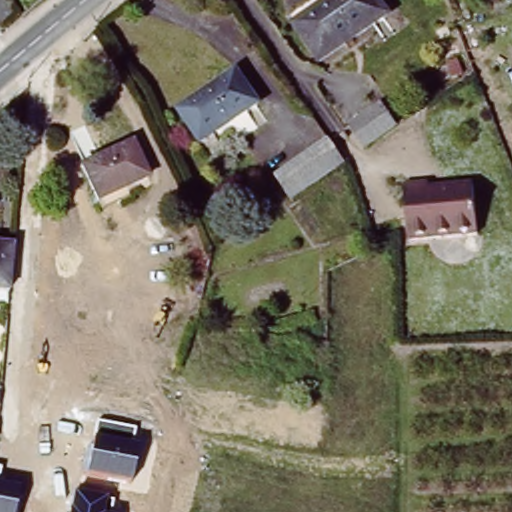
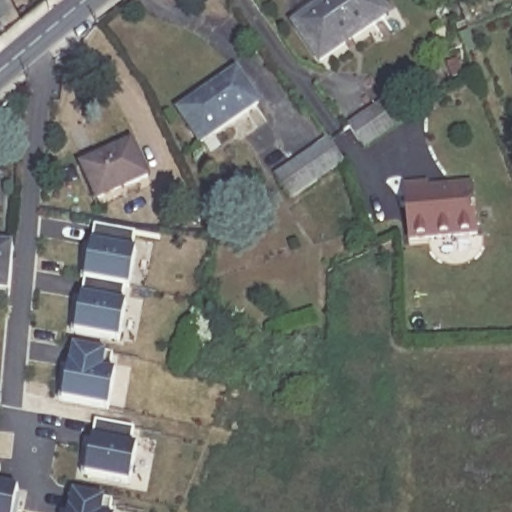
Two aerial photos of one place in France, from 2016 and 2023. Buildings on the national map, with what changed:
unchanged [(291,33),(301,26),(296,19),(324,0),(368,0),(384,25),(318,71),(291,33)]
unchanged [(201,146),(181,114),(209,95),(238,76),(261,108),(201,146)]
unchanged [(356,126),(371,115),(386,105),(403,129),(369,150),(353,127),(356,126)]
unchanged [(148,179),(97,202),(90,187),(81,169),(131,146),(144,171),(148,179)]
unchanged [(349,169),(296,204),(281,182),(281,180),(333,146),(349,169)]
unchanged [(429,188),(431,197),(449,196),(448,192),(473,190),(478,237),(411,243),(405,190),(429,188)]
new [(84,252),(88,252),(93,227),(133,234),(131,251),(134,252),(128,289),(124,288),(83,281),(79,280),(84,252)]
unchanged [(6,293),(0,293),(0,251),(10,251),(6,293)]
new [(74,305),(79,306),(83,281),(124,288),(121,305),(125,305),(118,342),(69,333),(74,305)]
demolished [(34,342),(38,315),(58,317),(56,344),(34,342)]
new [(62,373),(66,374),(70,349),(111,357),(108,373),(114,374),(108,412),(57,401),(62,373)]
unchanged [(94,423),(136,429),(133,443),(139,445),(131,486),(83,476),(94,423)]
unchanged [(0,481),(0,468),(1,468),(0,481)]
unchanged [(23,485),(17,512),(0,512),(0,481),(23,485)]
unchanged [(114,500),(113,512),(67,512),(71,490),(114,500)]

